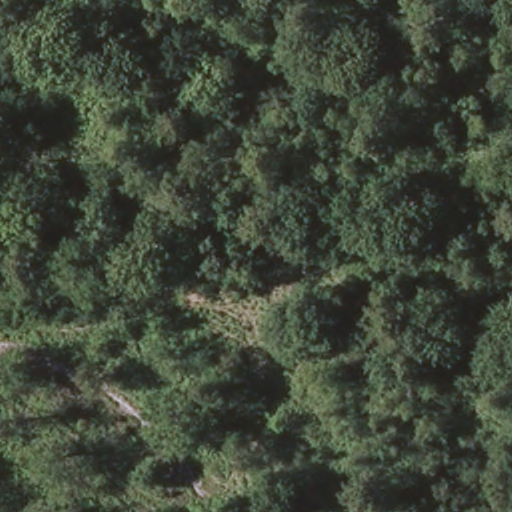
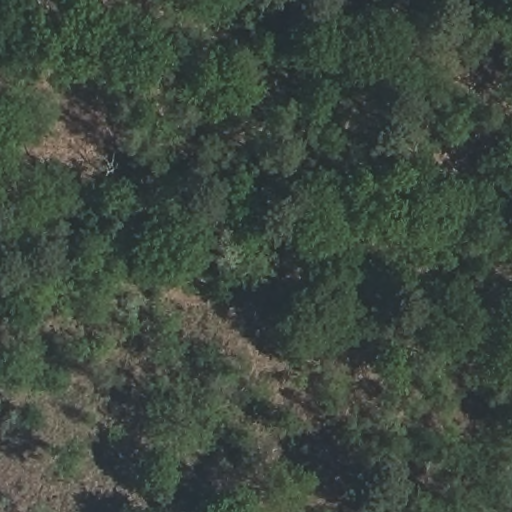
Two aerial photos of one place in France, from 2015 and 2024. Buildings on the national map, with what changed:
[]

